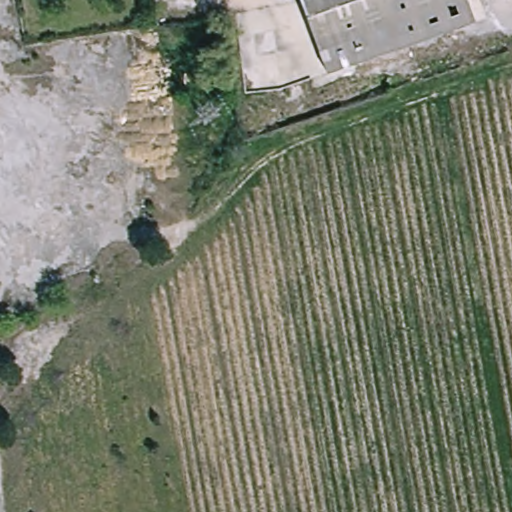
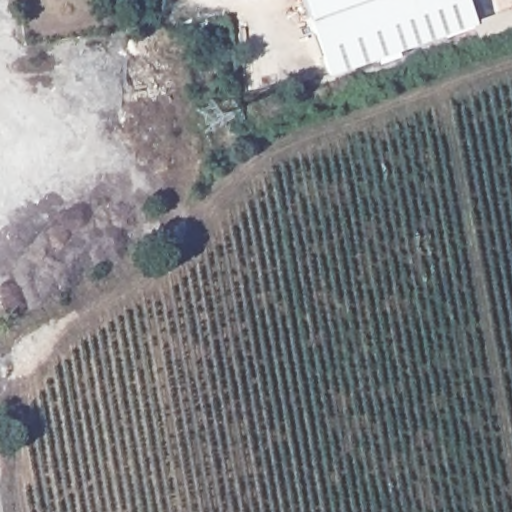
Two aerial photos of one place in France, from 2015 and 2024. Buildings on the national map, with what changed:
unchanged [(302,0),(464,0),(472,21),(328,72),(325,64),(302,0)]

